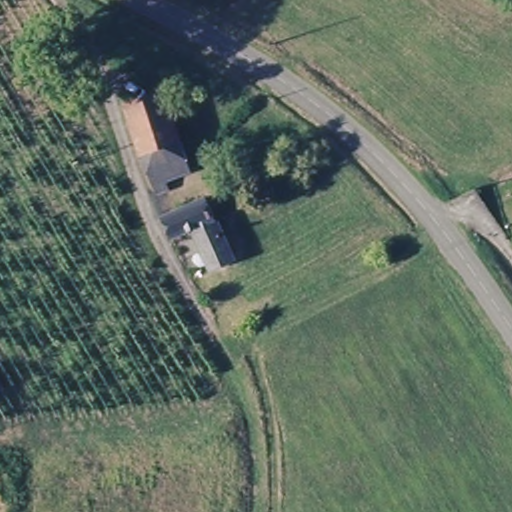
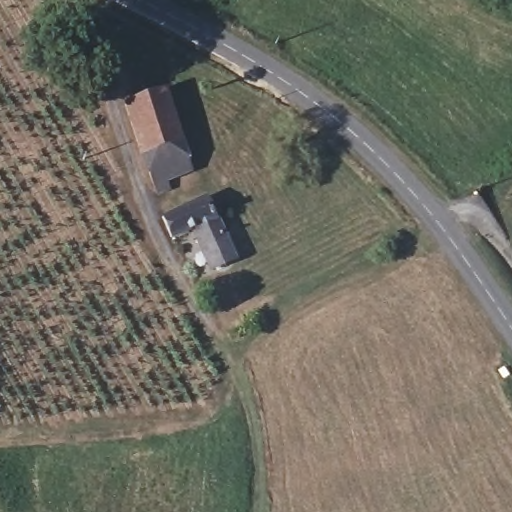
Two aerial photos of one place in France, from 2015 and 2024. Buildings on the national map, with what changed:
unchanged [(165,76),(192,160),(167,169),(170,177),(152,184),(121,92),(165,76)]
unchanged [(211,199),(219,218),(196,227),(173,237),(165,217),(211,199)]
unchanged [(219,218),(234,256),(211,265),(196,227),(219,218)]

